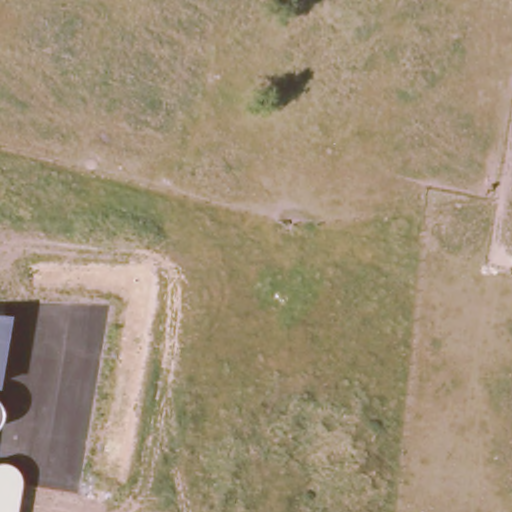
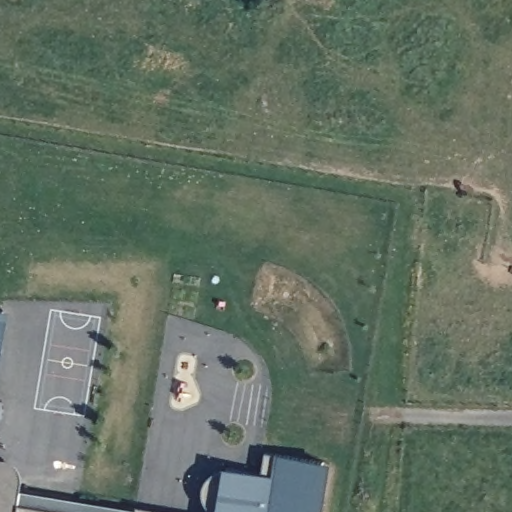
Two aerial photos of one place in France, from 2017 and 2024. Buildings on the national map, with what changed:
unchanged [(0,388),(0,310),(12,311),(0,388)]
unchanged [(2,401),(4,413),(1,422),(0,423),(0,397),(2,401)]
new [(215,511),(208,501),(206,488),(212,477),(222,472),(230,471),(231,468),(267,474),(271,455),(280,457),(280,454),(337,463),(328,512),(217,512),(215,511)]
unchanged [(12,458),(19,467),(23,476),(20,491),(17,512),(0,512),(0,457),(12,458)]
new [(140,511),(140,508),(162,512),(17,512),(20,491),(140,511)]

